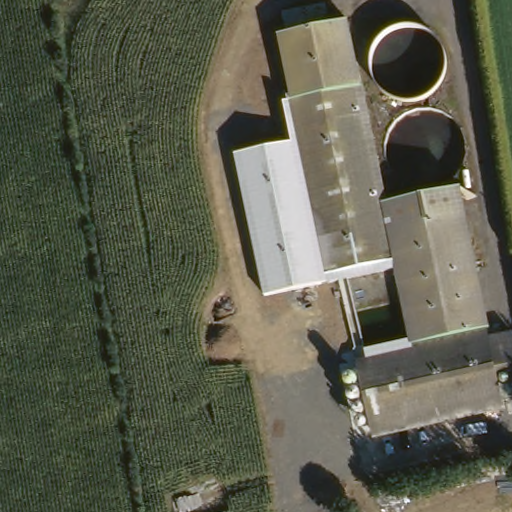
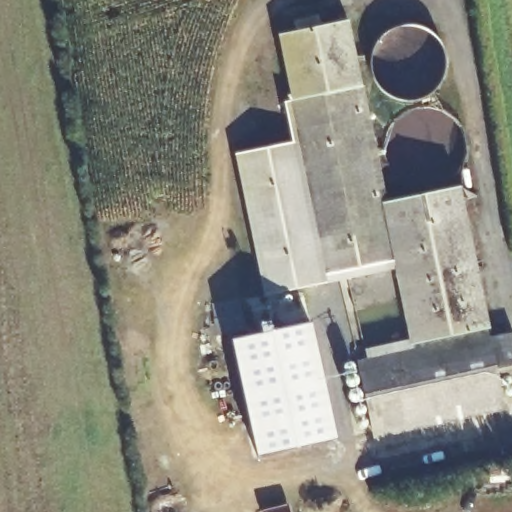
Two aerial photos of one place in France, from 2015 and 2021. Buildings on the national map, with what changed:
unchanged [(297,28),(358,15),(372,81),(303,96),(289,30),(297,28)]
unchanged [(372,81),(396,198),(408,254),(402,256),(338,269),(303,96),(372,81)]
unchanged [(338,269),(274,285),(244,151),(305,139),(297,97),(303,96),(338,269)]
unchanged [(473,181),(503,333),(421,348),(402,256),(408,254),(396,198),(473,181)]
new [(334,440),(256,458),(231,340),(309,321),(334,440)]
unchanged [(367,358),(421,348),(503,333),(512,331),(512,368),(508,369),(512,386),(512,397),(382,426),(367,358)]
demolished [(391,467),(388,455),(512,428),(512,441),(391,467)]

